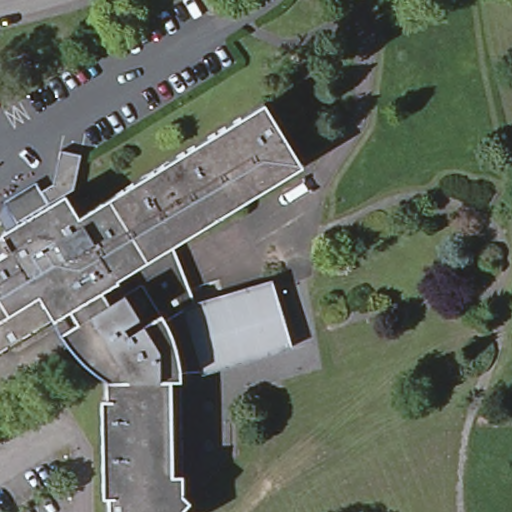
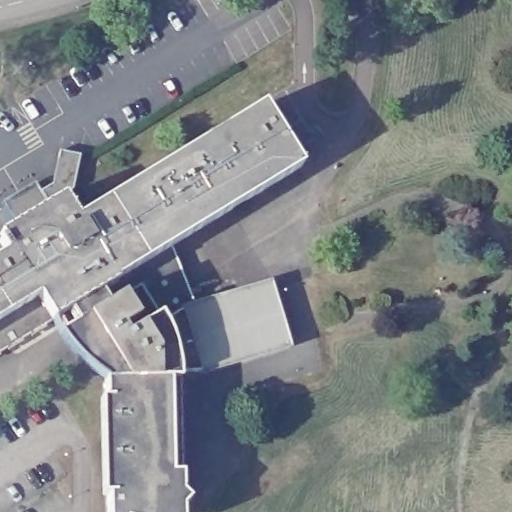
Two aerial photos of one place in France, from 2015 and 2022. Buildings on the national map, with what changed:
unchanged [(6,250),(0,241),(0,239),(3,237),(0,232),(17,221),(10,210),(53,183),(60,150),(80,155),(73,188),(64,193),(78,217),(265,105),(303,167),(172,245),(195,304),(271,284),(289,348),(205,371),(180,373),(181,494),(187,501),(181,509),(181,512),(107,512),(105,400),(105,379),(105,364),(98,353),(88,359),(62,315),(0,352),(0,254),(6,250)]

